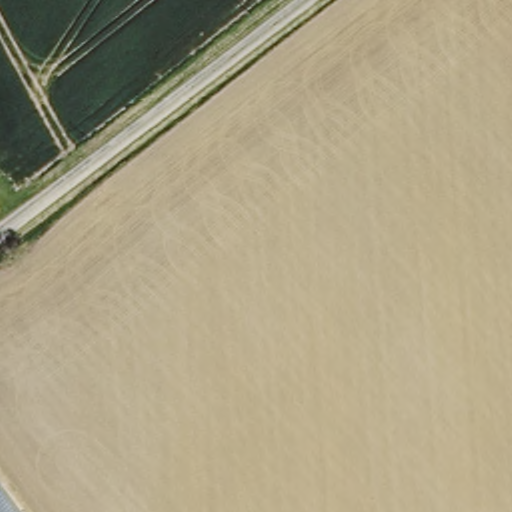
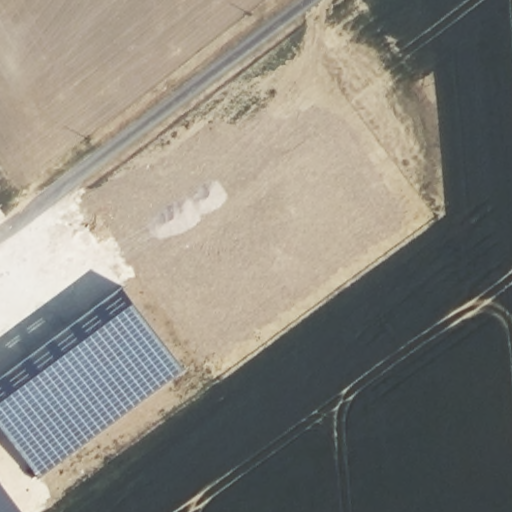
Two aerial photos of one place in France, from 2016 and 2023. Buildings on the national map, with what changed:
new [(182,371),(37,481),(0,431),(0,377),(119,288),(182,371)]
unchanged [(0,482),(0,472),(5,479),(0,482)]
unchanged [(0,512),(0,482),(22,512),(0,512)]

